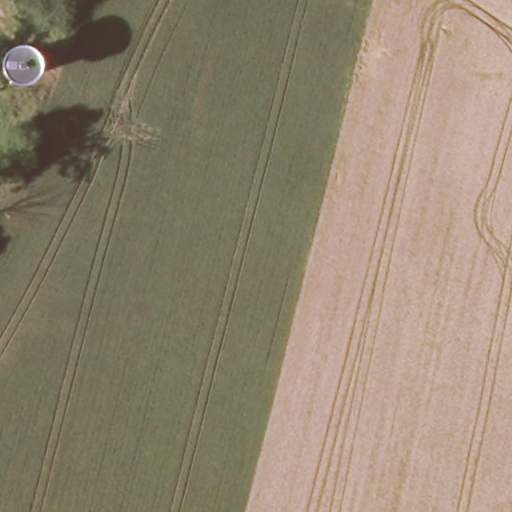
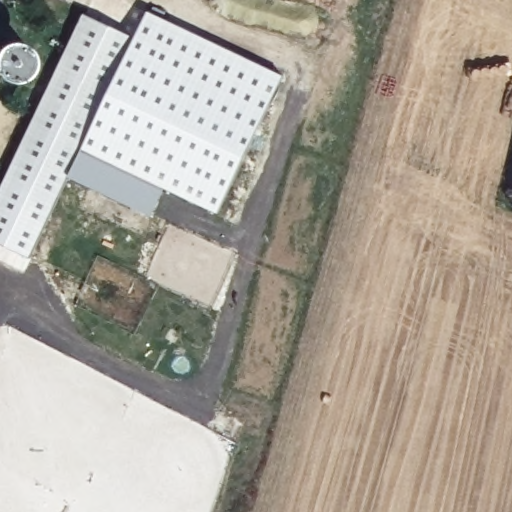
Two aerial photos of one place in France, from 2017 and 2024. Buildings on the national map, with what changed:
new [(0,192),(85,14),(135,38),(149,11),(284,76),(219,215),(165,189),(153,217),(70,177),(31,258),(0,244),(0,192)]

